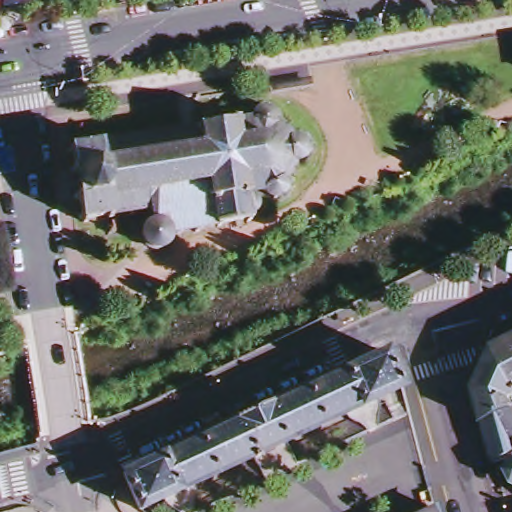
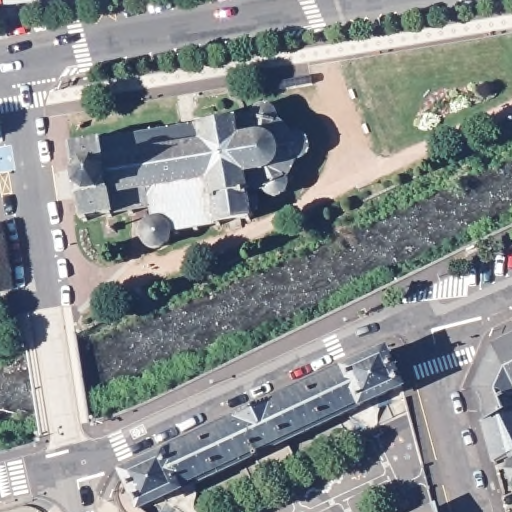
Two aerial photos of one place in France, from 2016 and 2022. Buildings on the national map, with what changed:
unchanged [(11,1),(0,3),(0,0),(11,0),(11,1)]
unchanged [(11,1),(11,0),(26,0),(11,1)]
unchanged [(75,149),(263,118),(264,114),(266,111),(269,108),(274,107),(276,107),(279,108),(282,110),(284,112),(285,116),(286,119),(284,123),(300,136),(304,135),(309,137),(312,139),(315,143),(316,146),(316,150),(314,154),(311,159),(309,160),(304,162),(294,182),(294,188),(293,192),(289,196),(286,198),(282,198),(277,197),(274,195),(271,191),(259,194),(263,198),(264,201),(264,203),(264,208),(263,211),(258,215),(258,220),(181,233),(181,240),(180,245),(175,251),(171,253),(166,254),(163,254),(156,250),(153,247),(151,243),(150,238),(151,234),(151,230),(156,226),(159,224),(162,223),(159,209),(88,221),(75,149)]
unchanged [(483,395),(501,351),(512,346),(512,399),(512,412),(491,422),(483,395)]
unchanged [(143,506),(126,472),(164,455),(163,450),(349,363),(351,366),(389,349),(404,384),(143,506)]
unchanged [(512,459),(502,464),(491,422),(512,412),(512,459)]
unchanged [(436,512),(442,509),(442,512),(436,512)]

